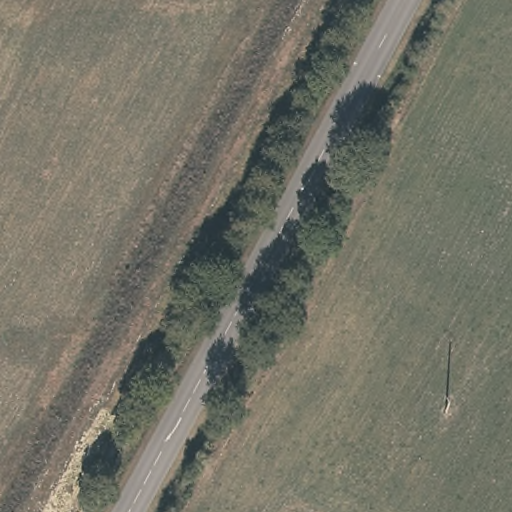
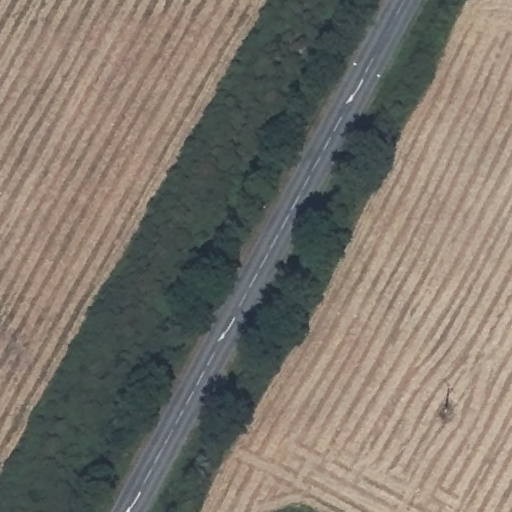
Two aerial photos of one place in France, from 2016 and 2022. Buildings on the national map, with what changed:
unchanged [(411,167),(398,197),(365,186),(382,152),(411,167)]

